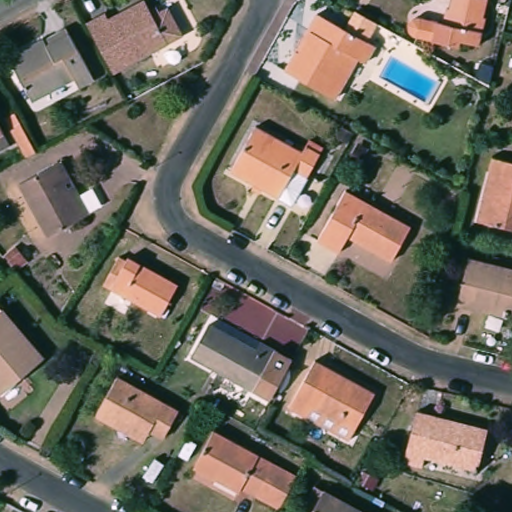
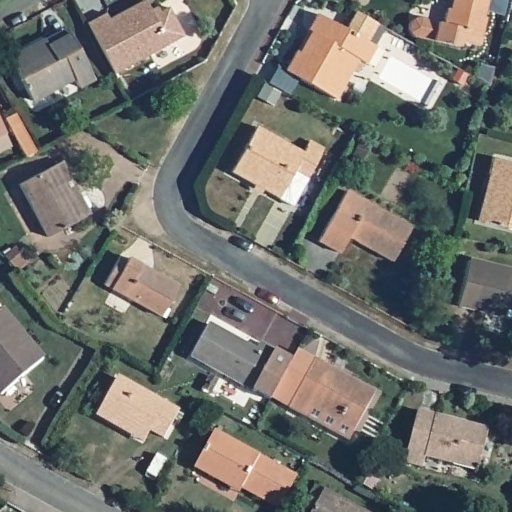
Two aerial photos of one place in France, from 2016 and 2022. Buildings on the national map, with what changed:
unchanged [(453,5),(454,0),(491,0),(481,44),(463,40),(451,36),(449,41),(419,34),(415,31),(412,30),(411,26),(412,21),(414,16),(418,14),(426,13),(446,17),(449,5),(453,5)]
unchanged [(150,5),(178,52),(141,73),(114,26),(150,5)]
unchanged [(300,50),(311,31),(307,28),(319,10),(376,41),(366,60),(359,56),(336,95),(286,66),(295,47),(300,50)]
unchanged [(46,49),(70,35),(95,77),(79,87),(74,79),(33,102),(10,60),(41,42),(46,49)]
unchanged [(303,150),(308,142),(322,150),(309,176),(295,169),(279,196),(231,171),(256,126),(303,150)]
unchanged [(65,158),(74,176),(65,181),(85,219),(52,238),(21,182),(65,158)]
unchanged [(494,159),(512,163),(512,230),(483,223),(494,175),(489,173),(494,159)]
unchanged [(411,225),(392,260),(348,237),(333,262),(312,250),(346,191),(411,225)]
unchanged [(122,257),(129,262),(133,257),(180,284),(162,316),(106,284),(122,257)]
unchanged [(512,307),(510,317),(459,305),(469,261),(512,272),(512,307)]
unchanged [(4,310),(46,360),(3,396),(0,392),(0,313),(4,310)]
unchanged [(209,323),(257,350),(263,341),(290,357),(269,398),(191,357),(209,323)]
unchanged [(375,392),(350,439),(293,406),(319,360),(375,392)]
unchanged [(116,422),(96,412),(117,375),(178,409),(163,436),(146,427),(140,436),(116,422)]
unchanged [(488,430),(477,473),(428,461),(426,468),(407,462),(422,411),(488,430)]
unchanged [(278,466),(262,497),(246,487),(242,493),(197,467),(217,431),(278,466)]
unchanged [(303,505),(303,496),(311,483),(361,512),(310,512),(311,510),(303,505)]

